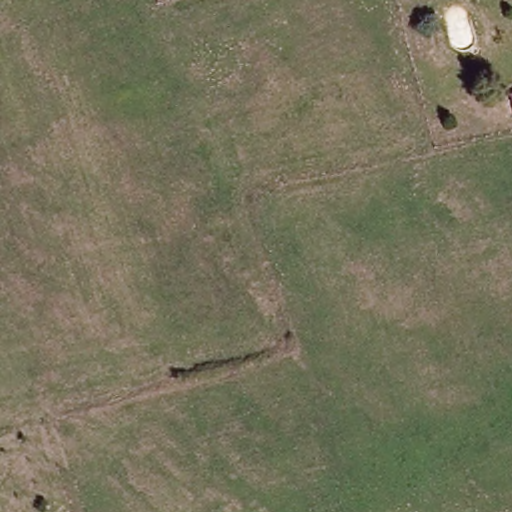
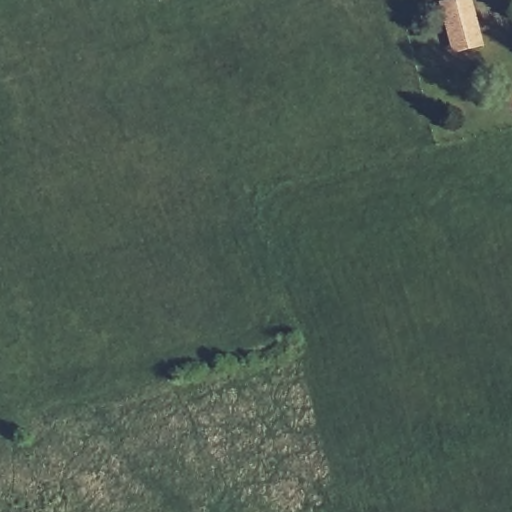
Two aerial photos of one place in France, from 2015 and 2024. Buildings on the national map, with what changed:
new [(476,37),(475,40),(471,46),(469,48),(465,49),(460,47),(455,44),(451,37),(445,11),(443,4),(459,0),(468,0),(469,5),(476,30),(476,37)]

